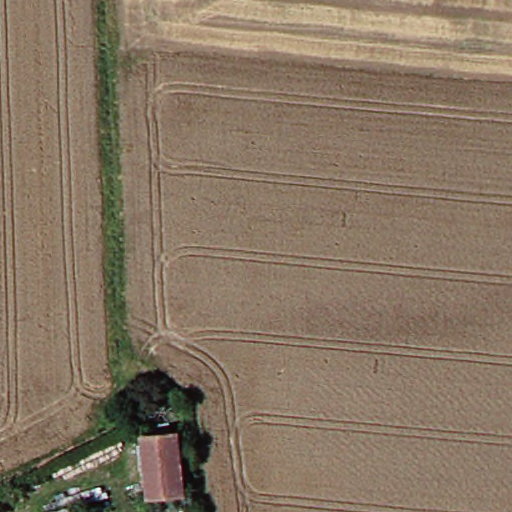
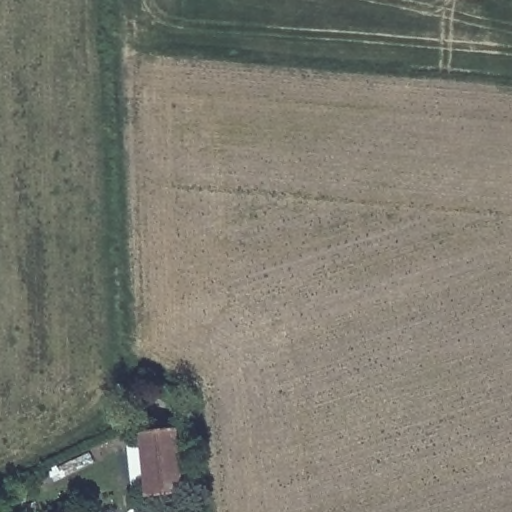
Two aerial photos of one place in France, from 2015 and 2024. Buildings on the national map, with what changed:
unchanged [(151,497),(147,436),(184,432),(189,495),(151,497)]

